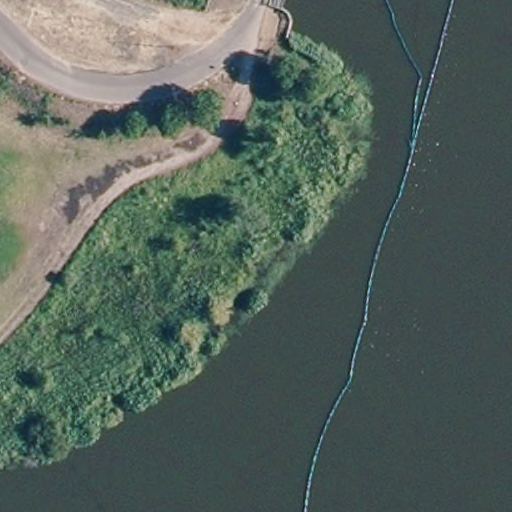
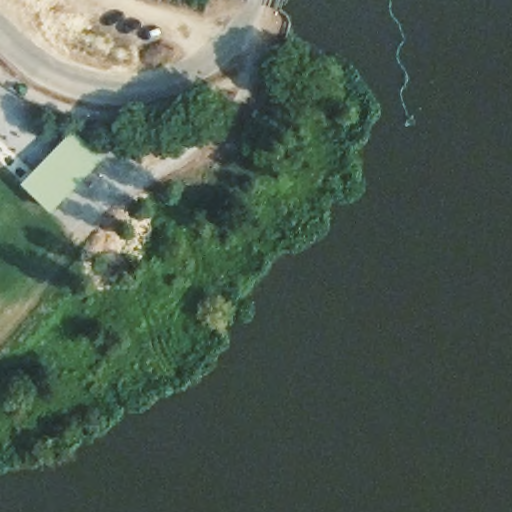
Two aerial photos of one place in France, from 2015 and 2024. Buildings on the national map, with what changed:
new [(50,212),(20,183),(73,129),(103,157),(50,212)]

